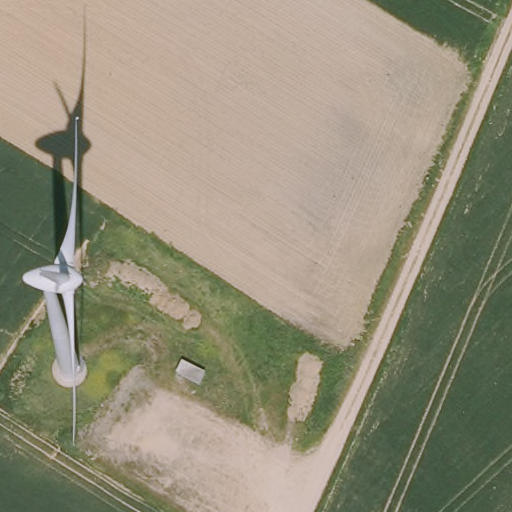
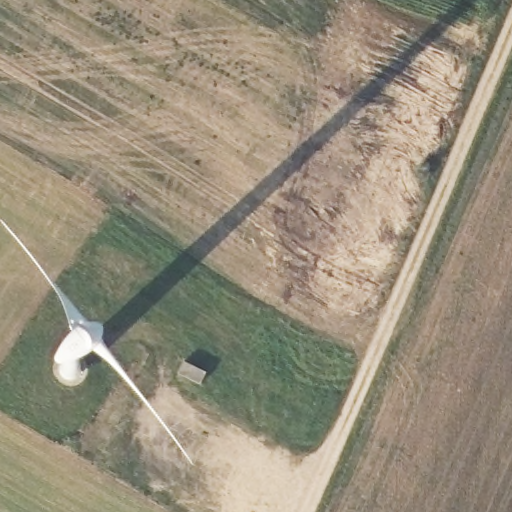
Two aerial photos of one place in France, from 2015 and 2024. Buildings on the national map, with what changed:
unchanged [(198,368),(221,379),(215,391),(193,379),(198,368)]

